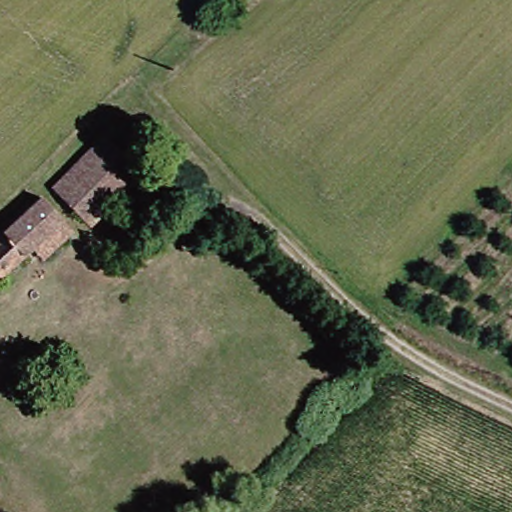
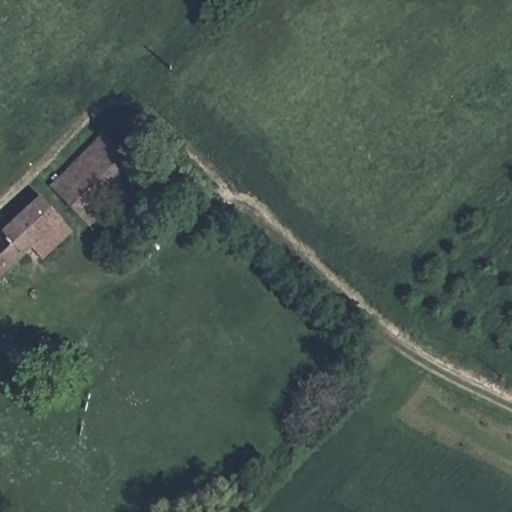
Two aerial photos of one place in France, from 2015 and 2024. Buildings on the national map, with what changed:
unchanged [(95,152),(111,139),(145,177),(130,192),(95,152)]
unchanged [(95,152),(130,192),(94,224),(58,187),(95,152)]
unchanged [(40,202),(58,224),(0,276),(0,240),(40,202)]

